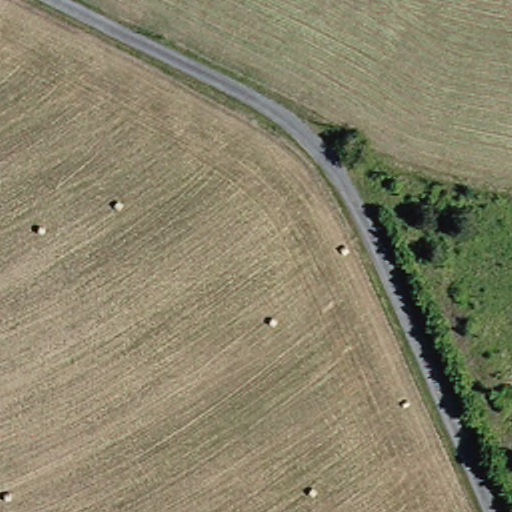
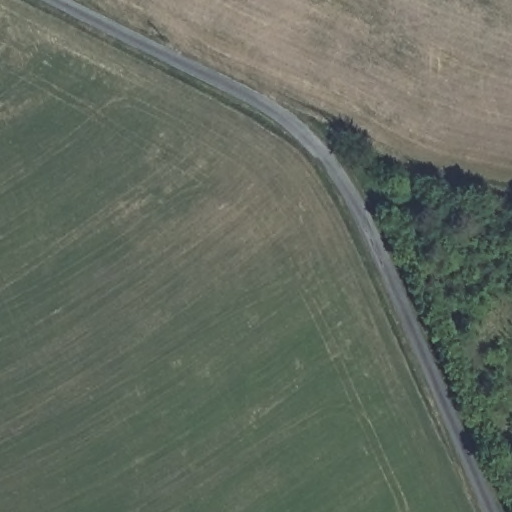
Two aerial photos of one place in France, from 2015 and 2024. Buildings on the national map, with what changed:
[]

